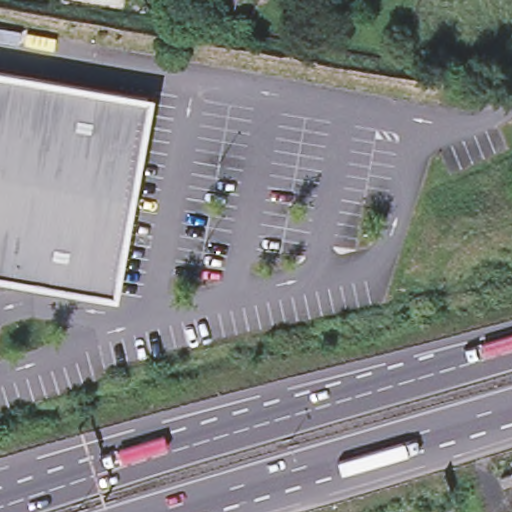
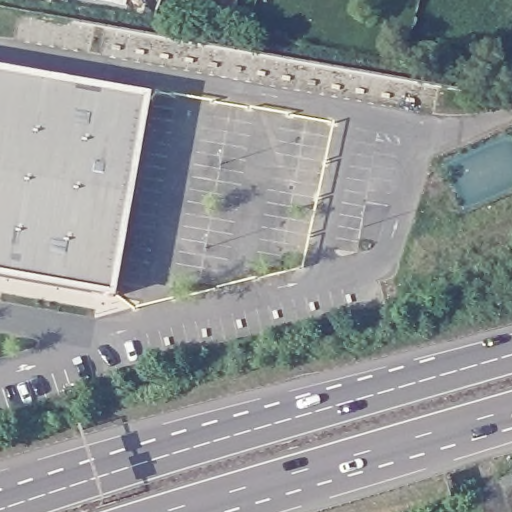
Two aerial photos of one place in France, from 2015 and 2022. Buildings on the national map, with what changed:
unchanged [(65,247),(77,290),(0,275),(0,74),(95,92),(65,247)]
unchanged [(65,247),(95,92),(148,103),(112,296),(77,290),(65,247)]

